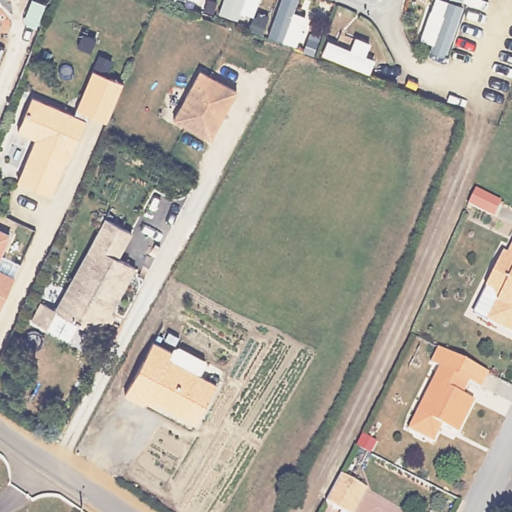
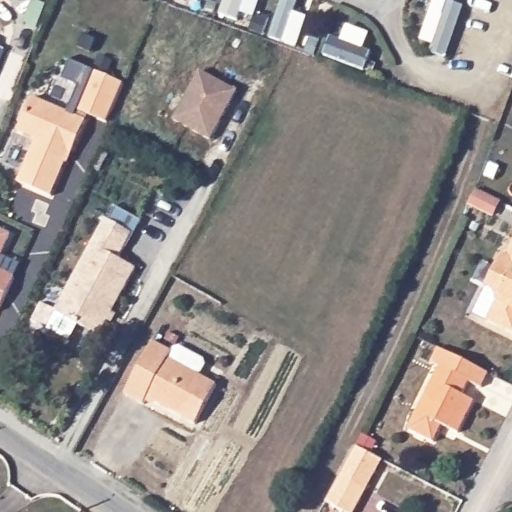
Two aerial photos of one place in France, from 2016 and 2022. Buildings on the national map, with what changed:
unchanged [(7,3),(0,0),(9,0),(7,3)]
unchanged [(19,127),(34,93),(76,111),(95,66),(125,79),(108,118),(90,110),(69,158),(66,158),(52,191),(19,177),(37,135),(19,127)]
unchanged [(175,123),(202,75),(239,95),(213,143),(175,123)]
unchanged [(133,232),(119,258),(137,268),(100,335),(79,324),(70,340),(33,320),(43,302),(57,310),(108,218),(133,232)]
unchanged [(9,238),(0,258),(0,234),(9,238)]
unchanged [(496,303),(493,292),(485,288),(502,255),(507,258),(512,249),(512,335),(486,322),(496,303)]
unchanged [(14,280),(0,312),(0,274),(14,280)]
unchanged [(197,428),(149,402),(145,408),(127,398),(156,346),(174,356),(171,362),(219,389),(197,428)]
unchanged [(468,381),(460,396),(472,402),(455,434),(421,416),(414,412),(431,380),(438,366),(468,381)]
unchanged [(352,512),(343,512),(324,501),(326,498),(339,474),(365,489),(352,512)]

